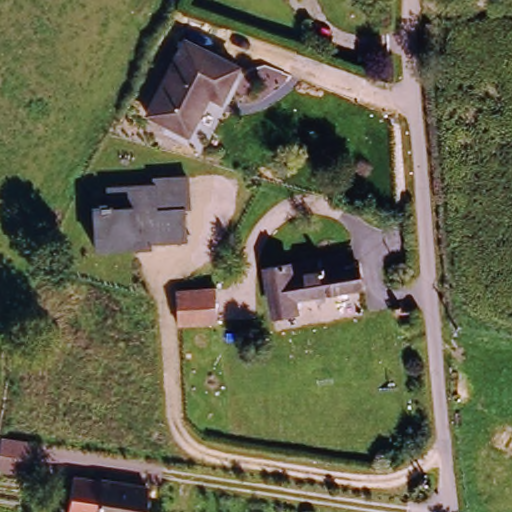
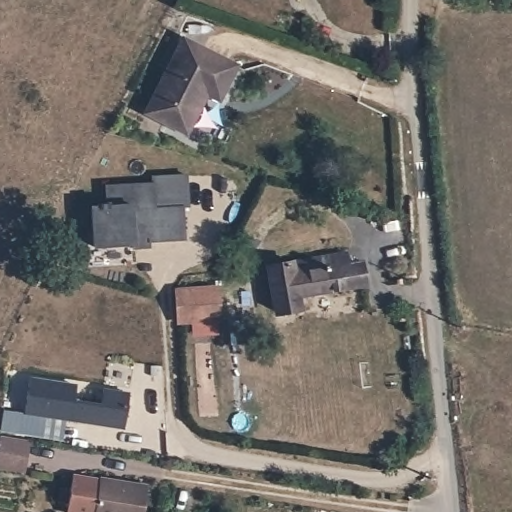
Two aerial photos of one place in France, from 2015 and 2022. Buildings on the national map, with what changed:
unchanged [(221,96),(206,89),(186,130),(147,113),(184,40),(237,65),(221,96)]
unchanged [(103,210),(99,190),(150,186),(151,179),(185,177),(189,210),(180,212),(182,243),(147,246),(147,256),(128,259),(126,248),(86,249),(88,213),(103,210)]
unchanged [(288,283),(296,308),(304,308),(308,319),(282,325),(268,275),(344,261),(347,270),(288,283)]
unchanged [(360,268),(367,295),(304,308),(296,308),(288,283),(347,270),(360,268)]
unchanged [(180,321),(171,321),(175,287),(215,289),(216,299),(216,324),(180,321)]
new [(2,430),(4,409),(26,413),(31,377),(78,385),(75,399),(101,403),(104,388),(129,392),(125,429),(66,421),(64,441),(2,430)]
unchanged [(27,447),(22,479),(0,476),(0,444),(27,447)]
unchanged [(100,486),(100,481),(147,487),(144,512),(67,512),(71,482),(100,486)]

